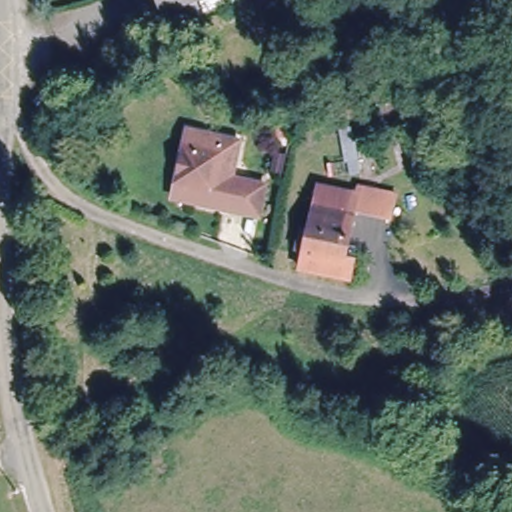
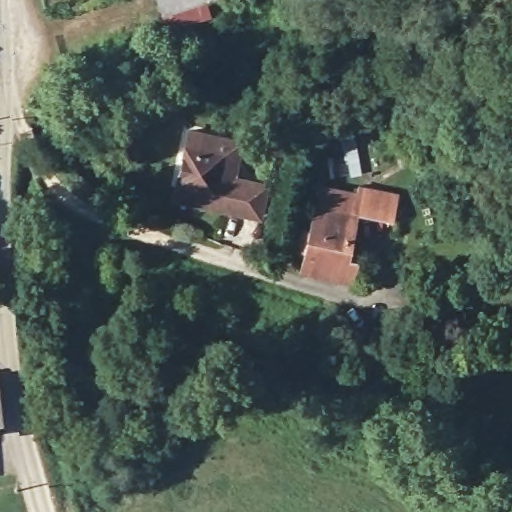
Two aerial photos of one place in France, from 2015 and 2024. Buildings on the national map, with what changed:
unchanged [(167,15),(163,0),(211,0),(167,15)]
unchanged [(265,211),(250,208),(200,201),(180,197),(182,181),(190,129),(242,137),(237,173),(255,177),(271,180),(265,211)]
unchanged [(265,175),(271,141),(285,144),(280,178),(265,175)]
unchanged [(393,215),(358,207),(350,250),(361,252),(359,269),(358,273),(306,264),(321,185),(322,182),(361,189),(362,181),(398,188),(396,201),(393,215)]

